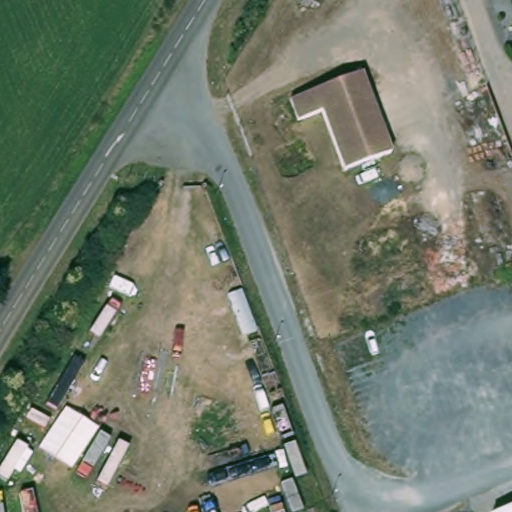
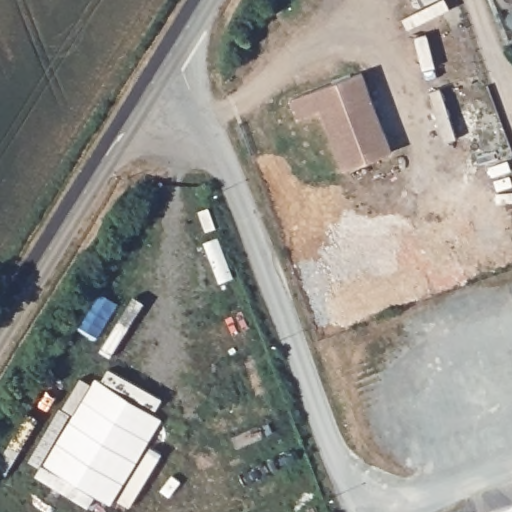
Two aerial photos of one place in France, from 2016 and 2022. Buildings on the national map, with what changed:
unchanged [(395,153),(349,172),(326,113),(301,122),(293,103),(367,74),(395,153)]
new [(162,418),(110,504),(44,464),(95,378),(162,418)]
unchanged [(512,511),(512,512),(510,512),(512,511)]

